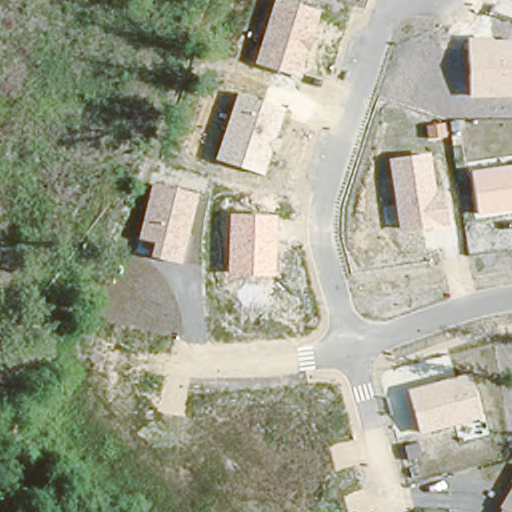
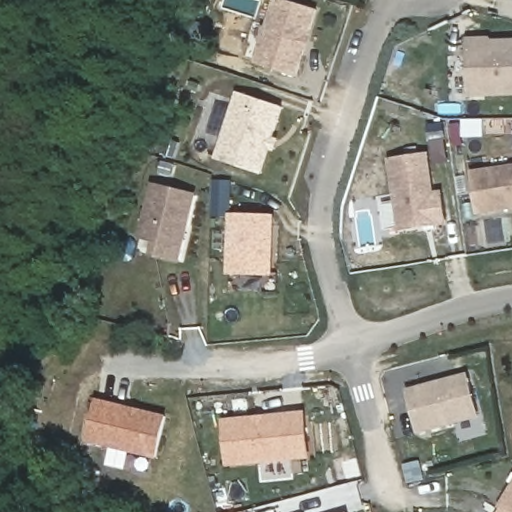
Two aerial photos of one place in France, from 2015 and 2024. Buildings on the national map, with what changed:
unchanged [(255,60),(274,0),(294,0),(321,10),(297,76),(255,60)]
unchanged [(470,96),(469,38),(512,37),(512,95),(470,96)]
unchanged [(277,137),(282,140),(278,153),(272,151),(263,175),(218,159),(242,92),(285,107),(277,137)]
unchanged [(436,188),(441,187),(449,224),(402,232),(391,158),(430,152),(436,188)]
unchanged [(477,215),(472,170),(512,165),(512,210),(477,215)]
unchanged [(179,264),(148,256),(152,242),(140,239),(155,181),(197,194),(179,264)]
unchanged [(274,276),(227,274),(230,214),(277,215),(274,276)]
unchanged [(482,417),(419,435),(408,392),(471,374),(482,417)]
new [(156,458),(87,441),(96,400),(166,417),(156,458)]
new [(262,481),(261,460),(229,463),(226,422),(304,415),(308,455),(290,457),(292,478),(262,481)]
unchanged [(502,508),(500,507),(512,489),(512,512),(499,512),(502,508)]

